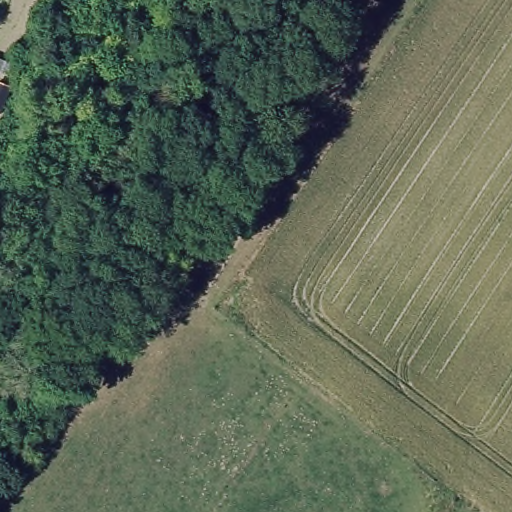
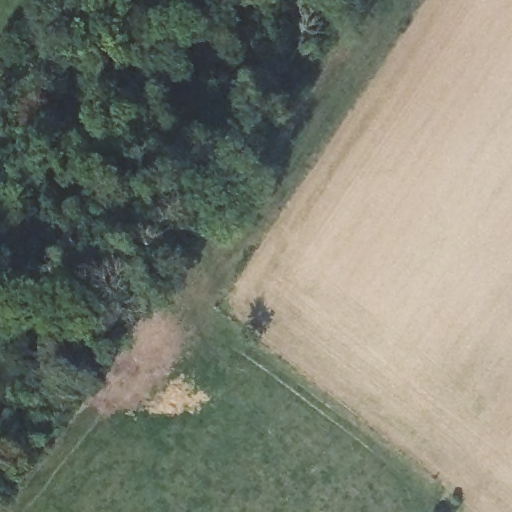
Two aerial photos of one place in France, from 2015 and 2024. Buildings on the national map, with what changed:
unchanged [(0,65),(0,54),(31,65),(27,73),(0,65)]

